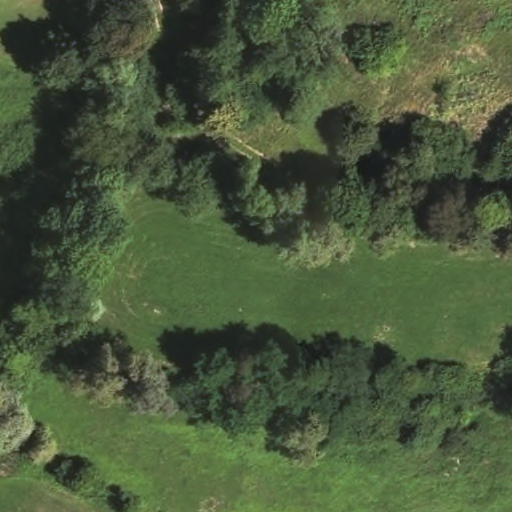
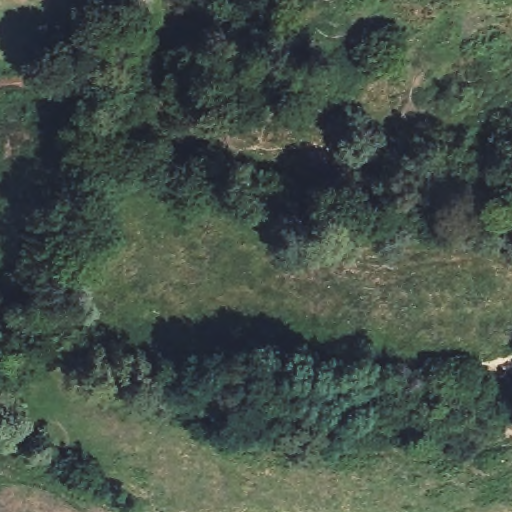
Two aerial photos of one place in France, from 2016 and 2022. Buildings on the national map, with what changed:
[]

